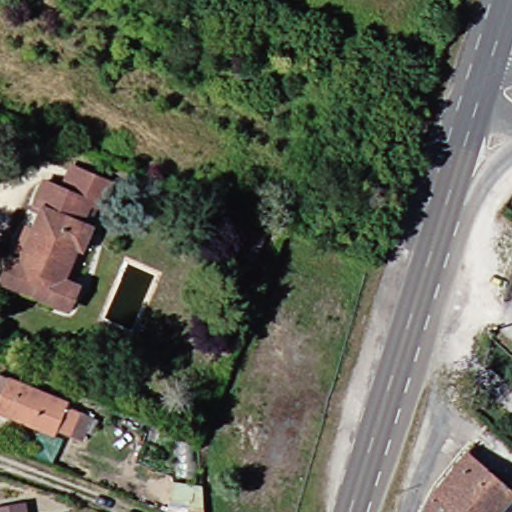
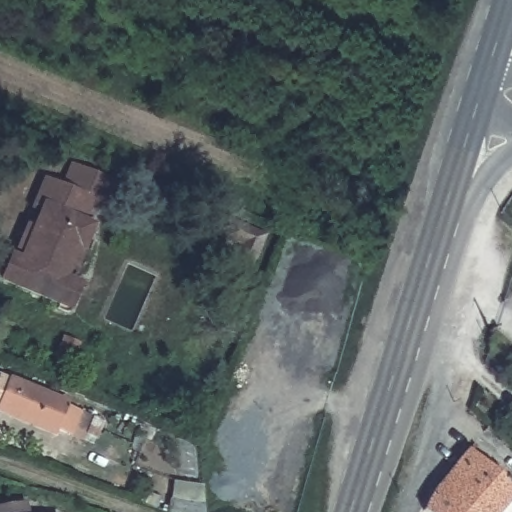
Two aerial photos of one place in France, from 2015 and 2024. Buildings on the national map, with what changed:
unchanged [(75,167),(120,185),(111,209),(94,203),(64,190),(75,167)]
unchanged [(51,212),(43,208),(52,185),(64,190),(94,203),(85,225),(94,228),(88,242),(46,225),(51,212)]
unchanged [(261,235),(246,268),(230,261),(238,243),(223,237),(230,221),(261,235)]
unchanged [(80,244),(64,284),(77,289),(68,310),(11,288),(19,267),(28,271),(34,256),(24,252),(32,231),(43,234),(46,225),(88,242),(86,246),(80,244)]
unchanged [(65,407),(92,419),(85,434),(59,422),(55,430),(0,406),(13,378),(68,400),(65,407)]
unchanged [(512,484),(512,500),(501,512),(426,512),(439,487),(470,454),(495,475),(498,472),(512,484)]
unchanged [(30,500),(32,512),(0,512),(0,505),(30,500)]

